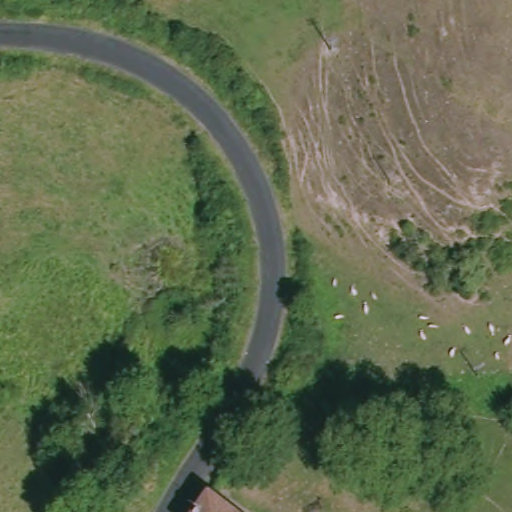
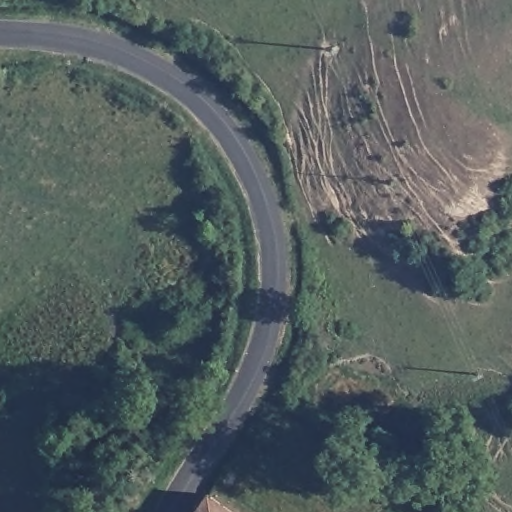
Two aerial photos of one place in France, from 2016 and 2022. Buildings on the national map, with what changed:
unchanged [(232,512),(194,512),(208,493),(232,512)]

